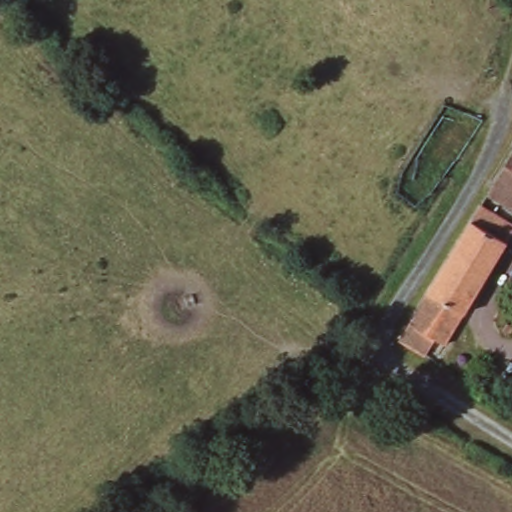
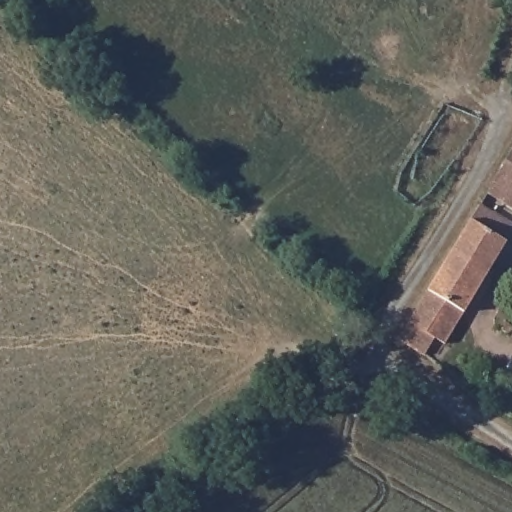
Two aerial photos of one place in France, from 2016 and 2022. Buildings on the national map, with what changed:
unchanged [(512,153),(512,207),(488,193),(512,153)]
unchanged [(512,230),(444,345),(434,340),(422,356),(398,346),(399,345),(414,322),(430,293),(469,222),(478,207),(512,230)]

